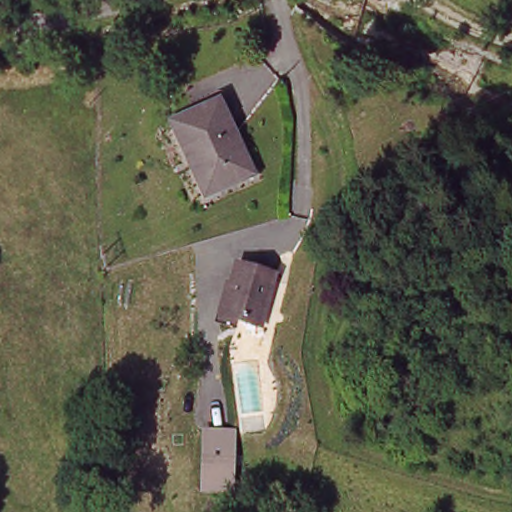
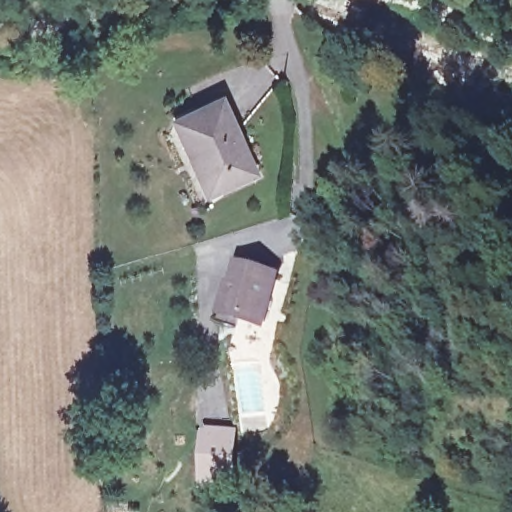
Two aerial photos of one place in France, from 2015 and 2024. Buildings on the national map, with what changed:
unchanged [(246,177),(200,201),(183,171),(191,166),(171,122),(214,102),(246,177)]
unchanged [(272,277),(262,328),(223,320),(233,269),(272,277)]
unchanged [(235,486),(205,486),(206,432),(234,432),(235,486)]

